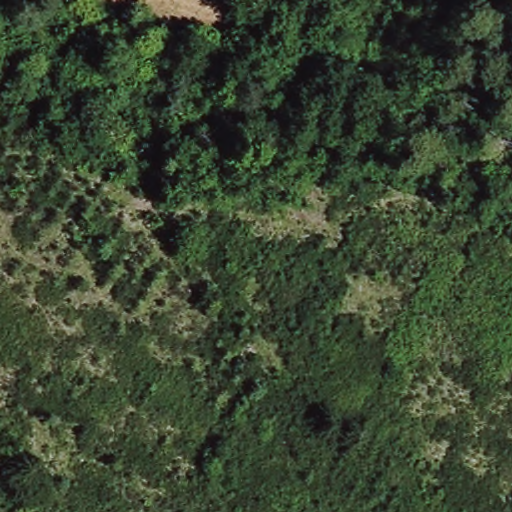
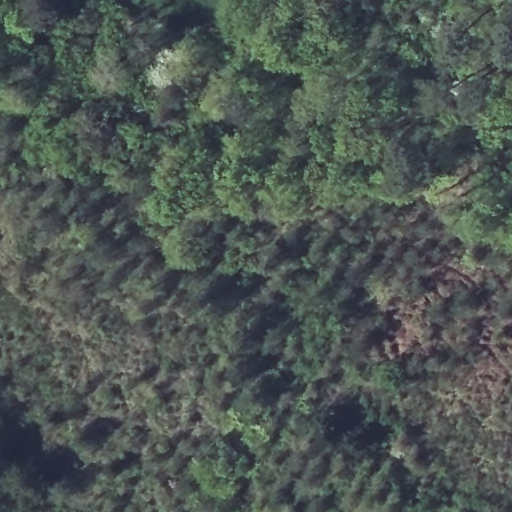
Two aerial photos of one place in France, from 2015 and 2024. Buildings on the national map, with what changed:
[]

